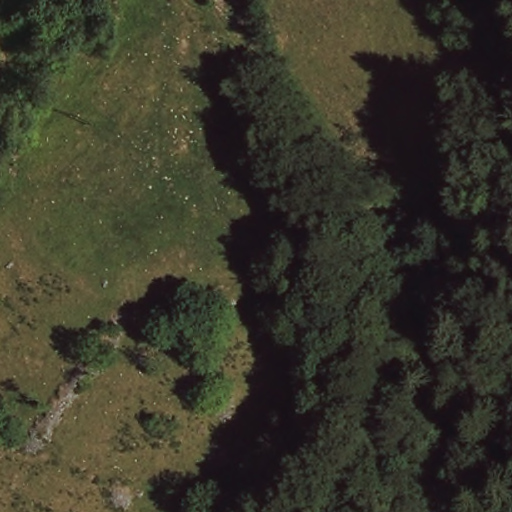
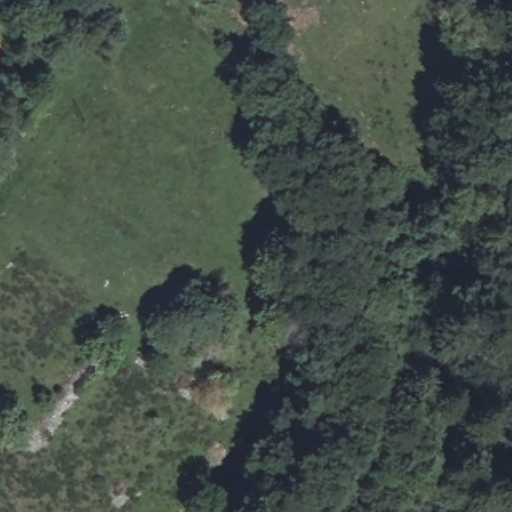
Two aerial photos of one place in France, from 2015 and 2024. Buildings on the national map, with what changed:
[]

